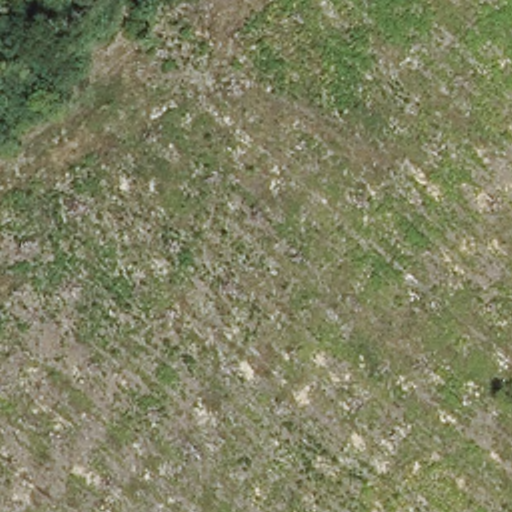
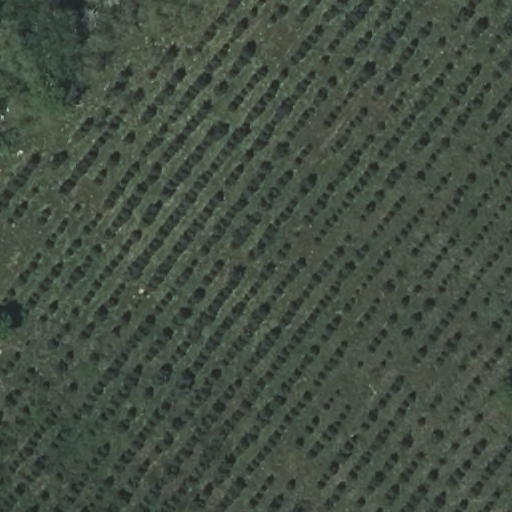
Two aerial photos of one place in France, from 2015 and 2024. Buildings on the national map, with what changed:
[]

